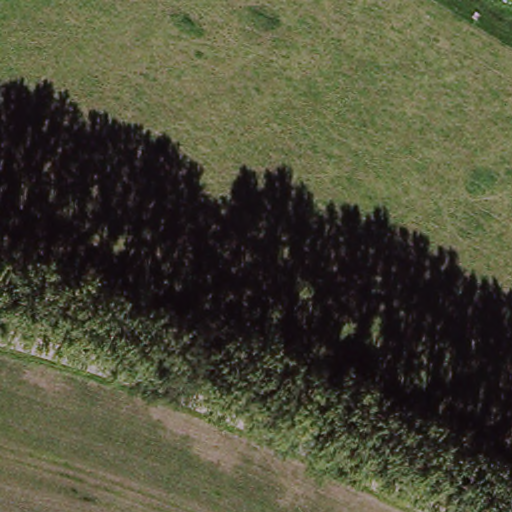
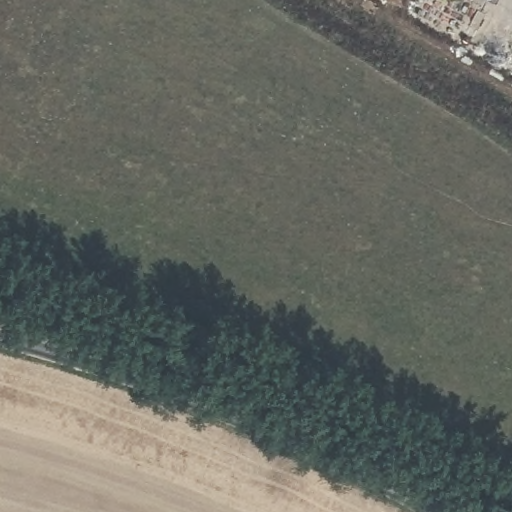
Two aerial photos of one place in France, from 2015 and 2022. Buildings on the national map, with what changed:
[]

